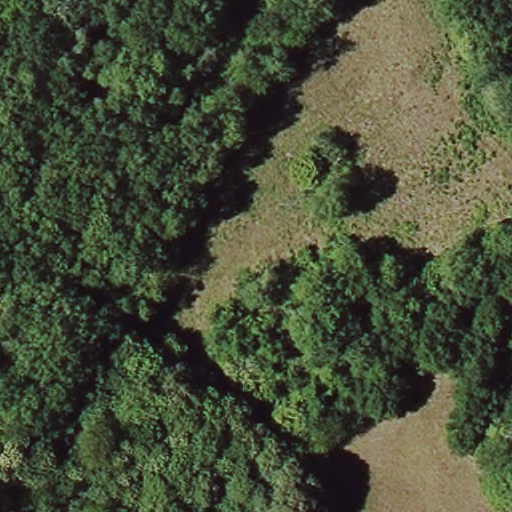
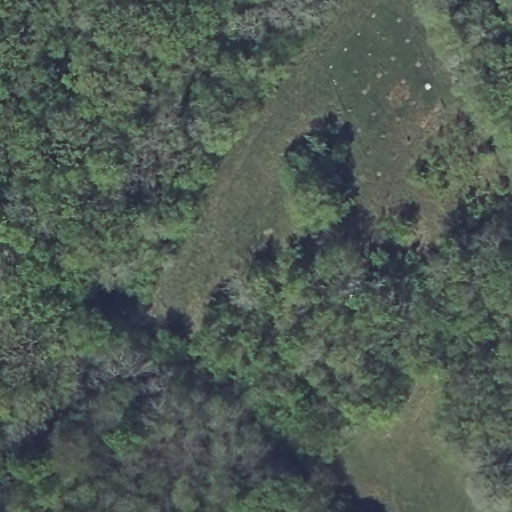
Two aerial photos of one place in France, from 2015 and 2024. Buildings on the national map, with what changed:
[]

